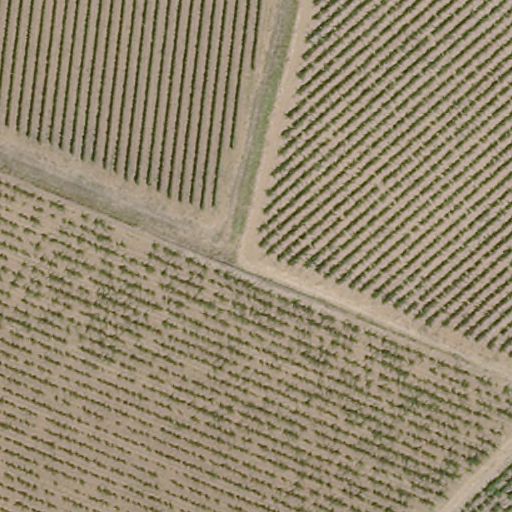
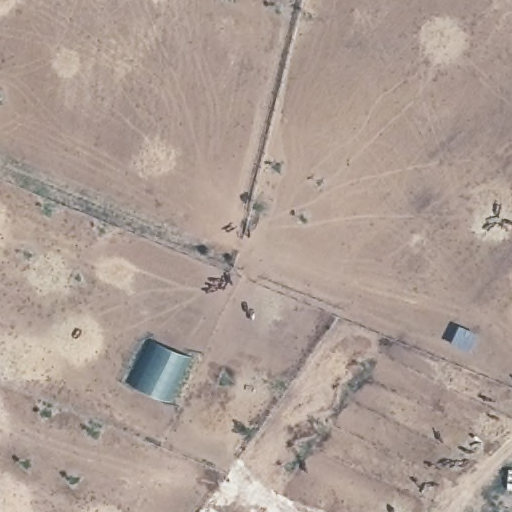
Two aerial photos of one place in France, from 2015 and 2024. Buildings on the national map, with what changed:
new [(188,355),(167,399),(131,384),(153,340),(188,355)]

